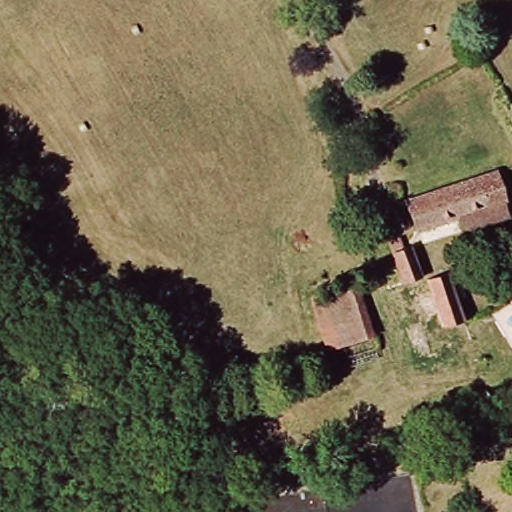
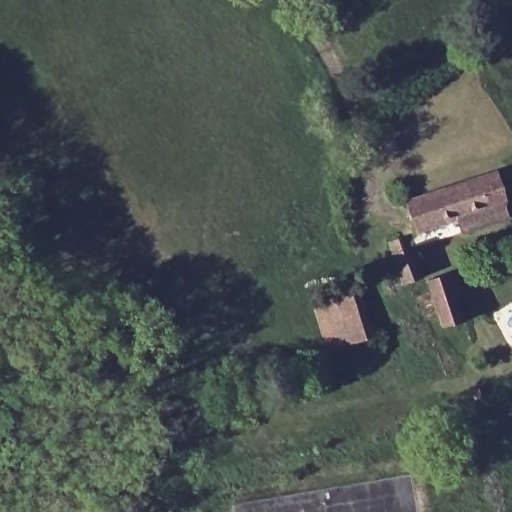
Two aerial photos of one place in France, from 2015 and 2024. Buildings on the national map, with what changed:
unchanged [(420,234),(407,205),(495,172),(507,203),(420,234)]
unchanged [(428,360),(412,364),(376,257),(415,245),(424,276),(456,273),(477,359),(433,375),(428,360)]
unchanged [(312,296),(358,282),(375,337),(327,351),(312,296)]

